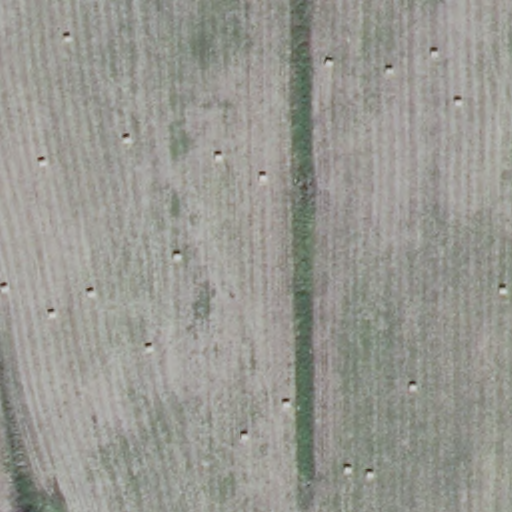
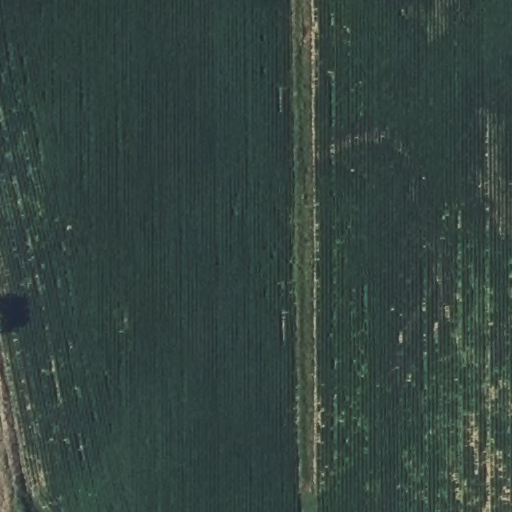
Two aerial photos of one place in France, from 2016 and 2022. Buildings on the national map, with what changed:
[]

